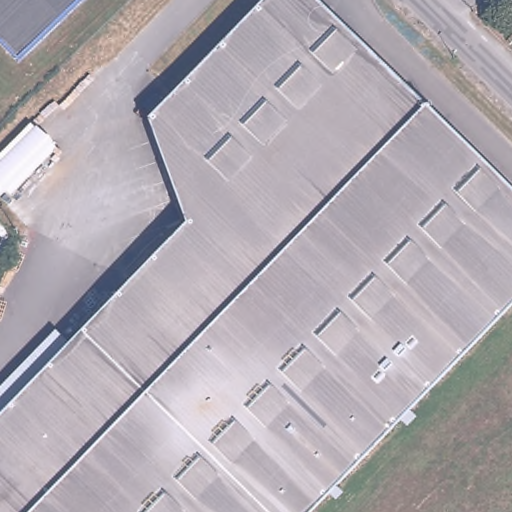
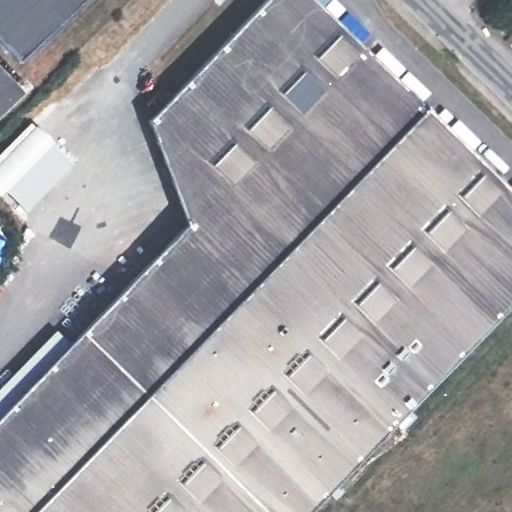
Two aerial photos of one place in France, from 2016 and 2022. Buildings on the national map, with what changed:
unchanged [(0,38),(0,0),(81,0),(20,59),(0,38)]
unchanged [(190,221),(152,115),(265,0),(319,0),(512,188),(512,304),(310,512),(144,512),(24,392),(190,221)]
unchanged [(144,512),(0,512),(0,417),(24,392),(144,512)]

